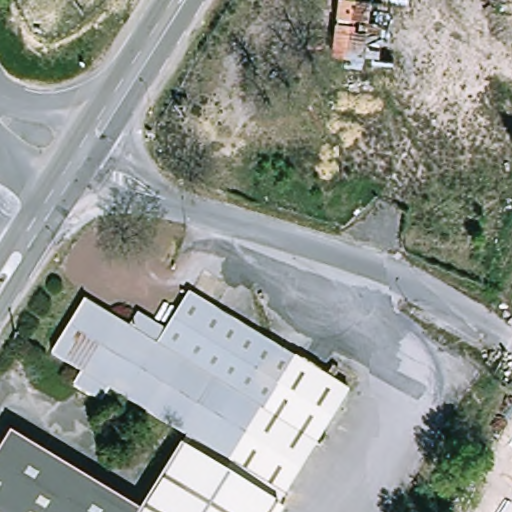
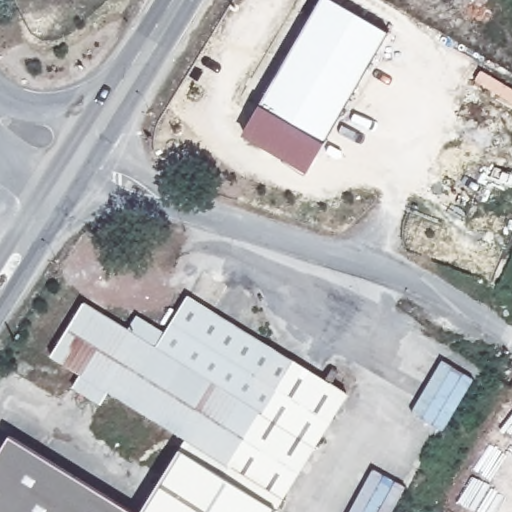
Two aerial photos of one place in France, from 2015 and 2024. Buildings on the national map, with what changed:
new [(325,140),(260,101),(322,0),(335,0),(391,34),(325,140)]
demolished [(396,61),(338,53),(348,0),(403,0),(403,3),(396,61)]
new [(325,140),(306,172),(242,134),(260,101),(325,140)]
unchanged [(97,306),(140,334),(149,323),(175,339),(203,302),(302,367),(301,369),(346,399),(279,501),(288,506),(283,512),(140,512),(186,439),(183,438),(131,405),(109,391),(100,405),(75,389),(85,374),(61,359),(97,306)]
unchanged [(9,434),(80,479),(132,512),(0,512),(0,448),(9,434)]

